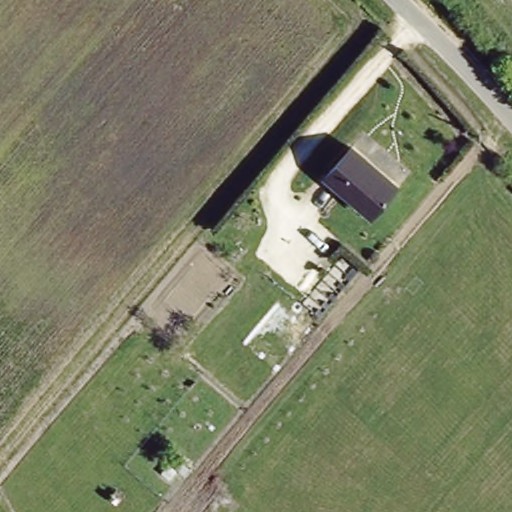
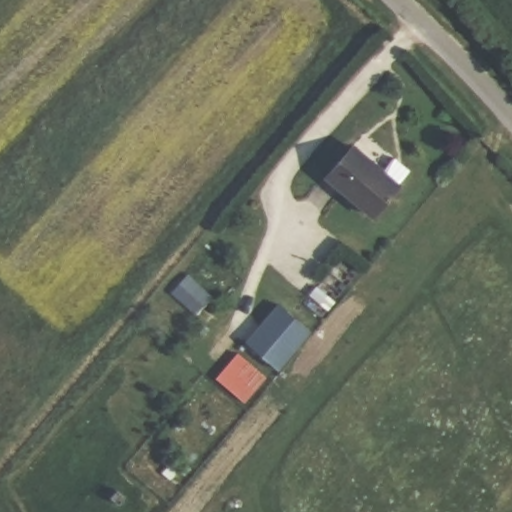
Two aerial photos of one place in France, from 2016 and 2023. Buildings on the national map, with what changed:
unchanged [(351,144),(397,184),(370,215),(324,175),(351,144)]
new [(279,370),(246,343),(279,305),(311,331),(279,370)]
new [(245,403),(215,380),(237,352),(267,377),(245,403)]

